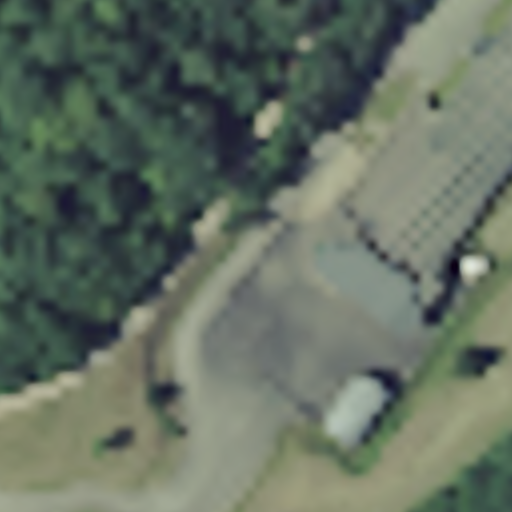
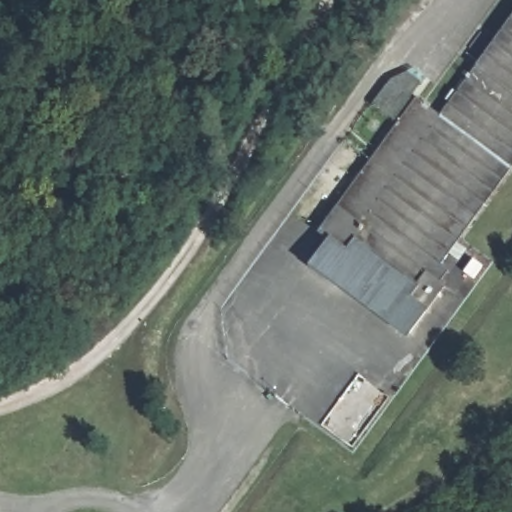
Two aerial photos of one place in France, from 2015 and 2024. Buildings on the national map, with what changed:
unchanged [(512,182),(409,321),(335,265),(512,22),(512,182)]

